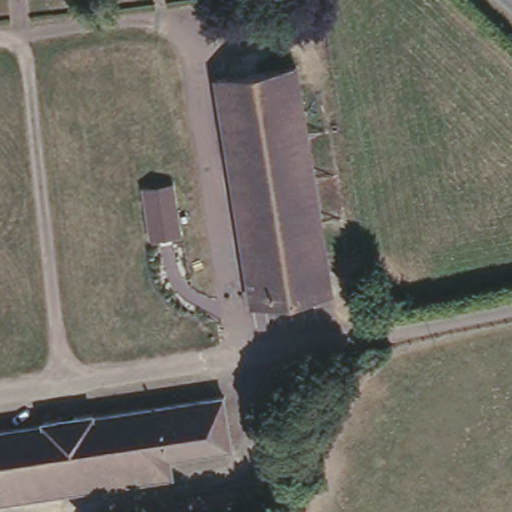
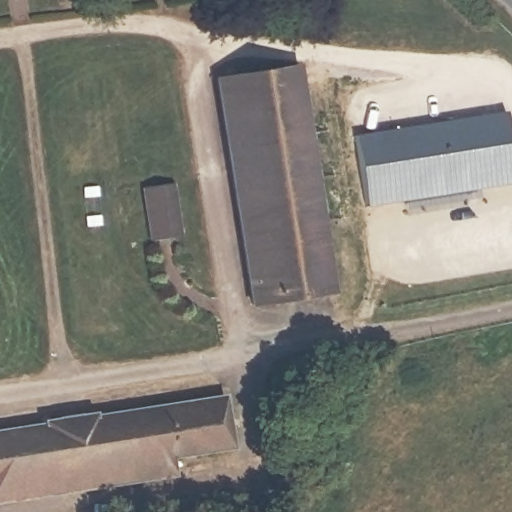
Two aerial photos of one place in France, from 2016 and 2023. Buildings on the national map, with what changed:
unchanged [(254,298),(220,72),(297,60),(331,286),(254,298)]
new [(512,152),(512,182),(366,205),(356,133),(506,107),(512,152)]
unchanged [(39,420),(38,416),(92,407),(93,411),(219,390),(227,442),(0,479),(0,426),(39,420)]

